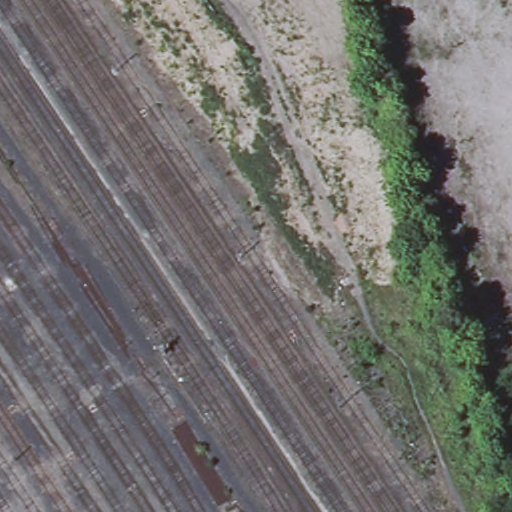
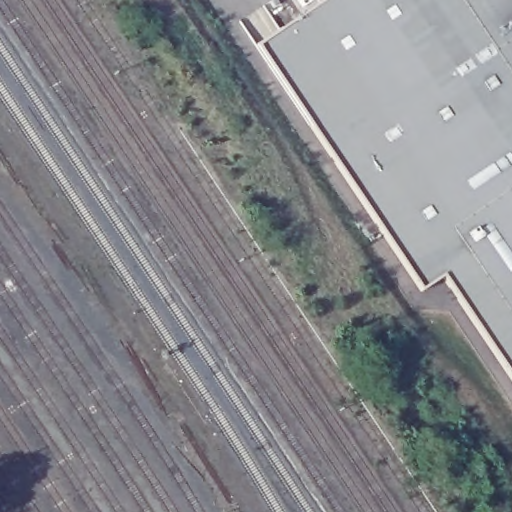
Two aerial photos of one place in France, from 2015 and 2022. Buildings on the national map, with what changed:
new [(422,290),(259,44),(324,0),(512,0),(512,379),(443,276),(422,290)]

